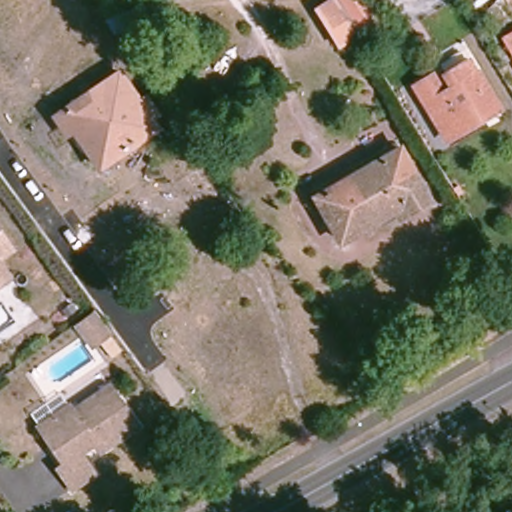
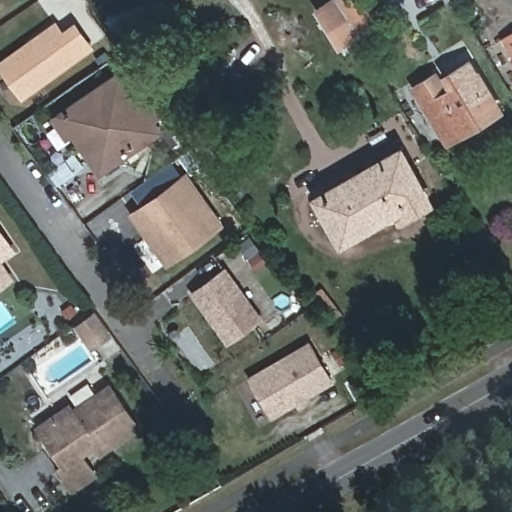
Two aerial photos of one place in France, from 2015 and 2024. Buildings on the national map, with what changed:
unchanged [(319,8),(332,0),(368,0),(382,23),(358,37),(357,35),(341,44),(319,8)]
demolished [(480,19),(457,0),(494,0),(480,19)]
unchanged [(128,30),(124,14),(144,8),(149,24),(128,30)]
new [(92,49),(21,99),(0,69),(0,59),(56,20),(63,29),(75,21),(92,49)]
new [(500,40),(512,32),(512,59),(500,40)]
unchanged [(421,87),(439,76),(450,95),(459,90),(451,76),(473,63),(480,76),(482,74),(503,110),(453,140),(421,87)]
unchanged [(73,128),(66,133),(55,117),(119,73),(139,102),(145,97),(158,114),(151,118),(159,129),(100,168),(73,128)]
unchanged [(376,222),(340,242),(316,198),(398,152),(426,203),(405,215),(380,230),(376,222)]
new [(186,170),(224,224),(166,266),(128,213),(186,170)]
demolished [(89,252),(61,215),(87,196),(114,234),(89,252)]
unchanged [(0,257),(0,227),(15,247),(0,257)]
unchanged [(0,285),(0,258),(13,276),(0,285)]
new [(226,346),(188,291),(226,264),(263,318),(226,346)]
unchanged [(95,311),(113,336),(91,351),(74,327),(95,311)]
new [(311,400),(298,408),(296,403),(271,419),(246,376),(309,340),(334,382),(309,396),(311,400)]
unchanged [(138,427),(100,453),(94,444),(80,454),(94,474),(71,490),(57,469),(63,465),(38,427),(69,405),(73,411),(109,386),(138,427)]

